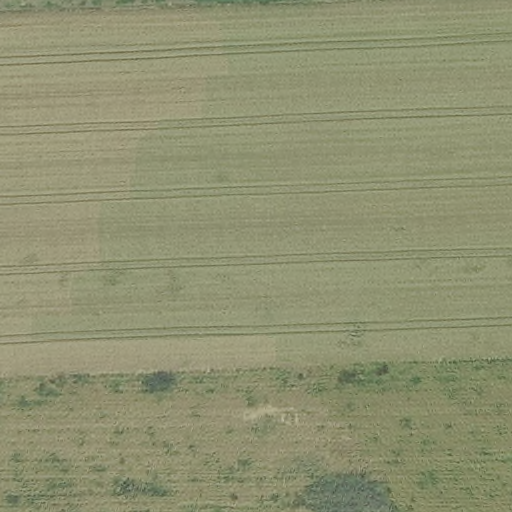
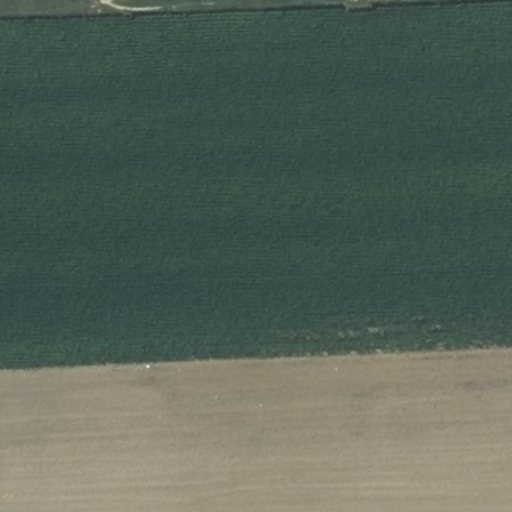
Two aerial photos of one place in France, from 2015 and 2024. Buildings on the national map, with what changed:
[]

